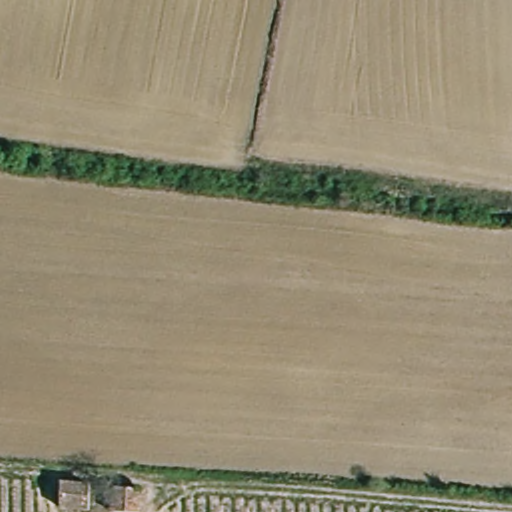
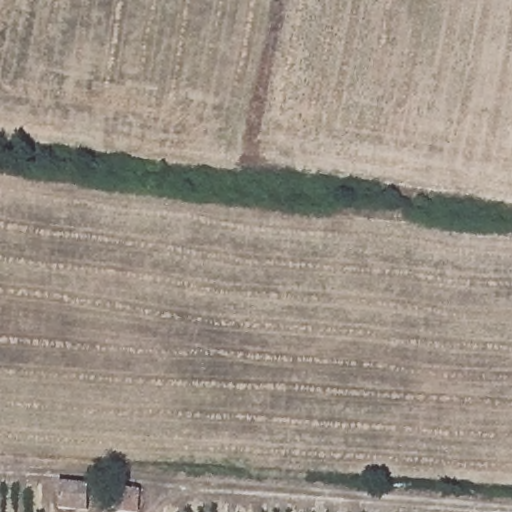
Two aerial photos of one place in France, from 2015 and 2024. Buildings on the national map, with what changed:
unchanged [(87,511),(58,509),(60,484),(89,486),(87,511)]
unchanged [(137,512),(112,512),(114,489),(140,491),(137,512)]

